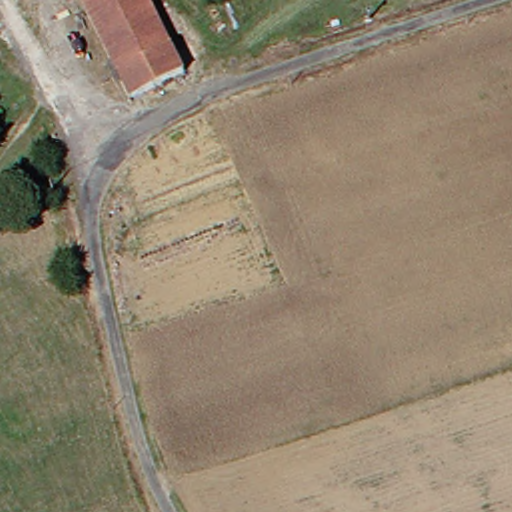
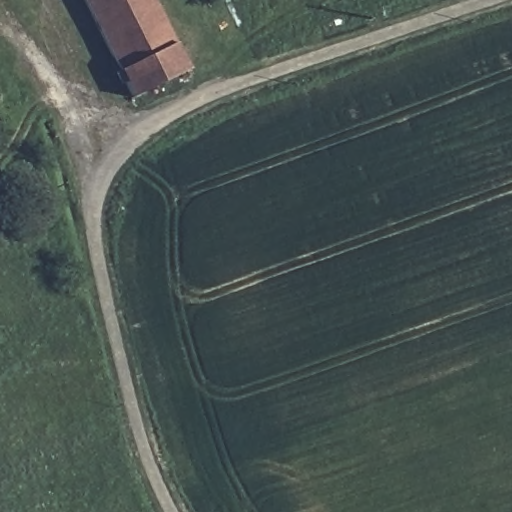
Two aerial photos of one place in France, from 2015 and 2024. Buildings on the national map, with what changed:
unchanged [(162,0),(182,41),(129,67),(95,0),(162,0)]
unchanged [(195,67),(142,94),(129,67),(182,41),(195,67)]

